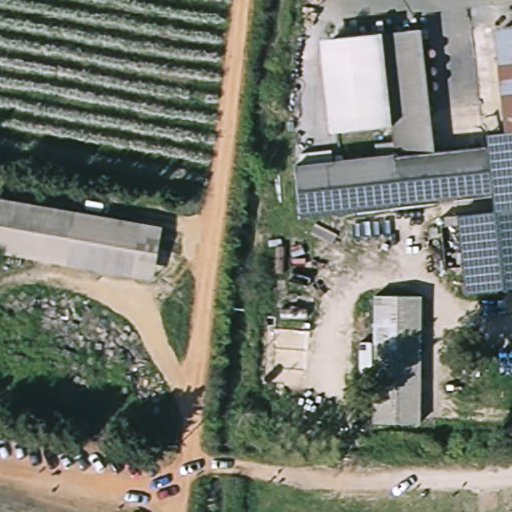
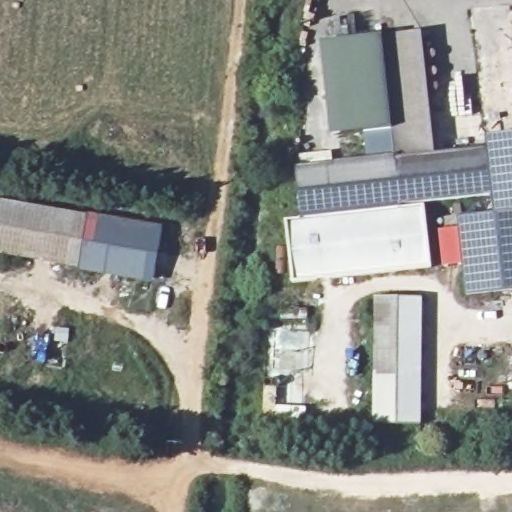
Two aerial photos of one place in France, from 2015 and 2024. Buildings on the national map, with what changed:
unchanged [(457,210),(492,207),(490,193),(397,203),(397,205),(299,216),(293,165),(392,154),(390,130),(380,31),(414,28),(428,150),(482,146),(479,128),(501,125),(489,21),(512,19),(512,280),(465,285),(462,260),(440,262),(437,220),(456,217),(457,210)]
unchanged [(390,130),(326,134),(316,39),(380,31),(390,130)]
unchanged [(0,253),(0,198),(162,226),(152,281),(0,253)]
new [(425,205),(432,267),(292,284),(285,220),(425,205)]
unchanged [(374,300),(425,300),(422,428),(367,426),(374,300)]

